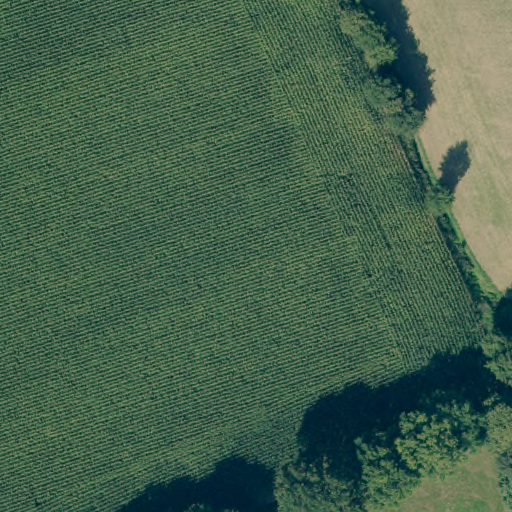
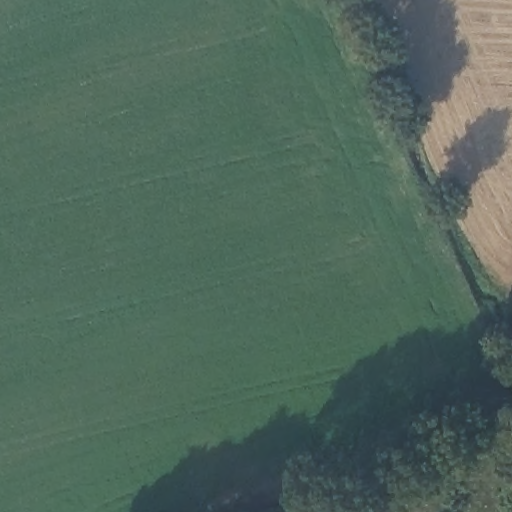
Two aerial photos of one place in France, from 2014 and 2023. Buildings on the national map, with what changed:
[]

